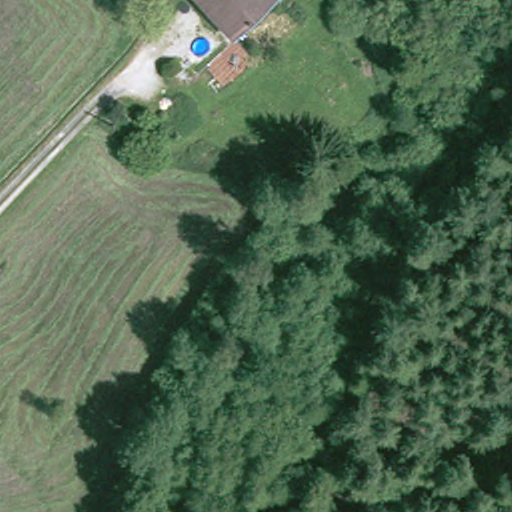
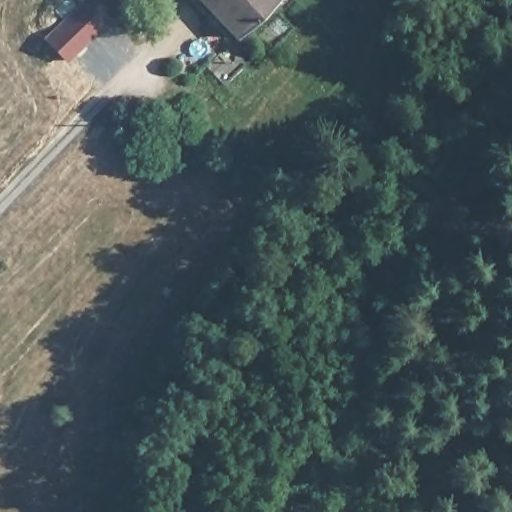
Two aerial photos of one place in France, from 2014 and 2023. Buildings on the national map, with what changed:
new [(65,22),(54,13),(67,0),(69,0),(78,9),(83,4),(105,27),(68,63),(46,41),(65,22)]
unchanged [(238,38),(200,0),(276,0),(238,38)]

